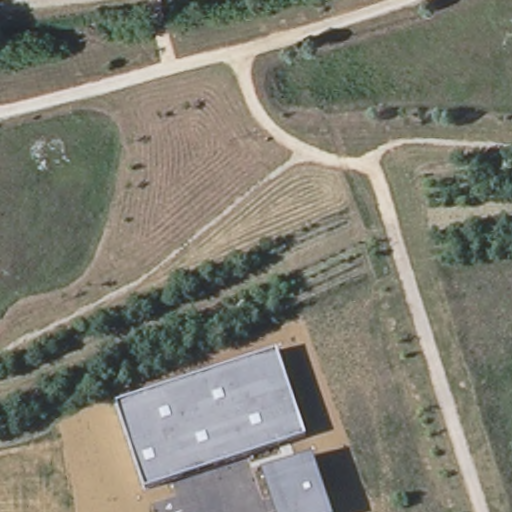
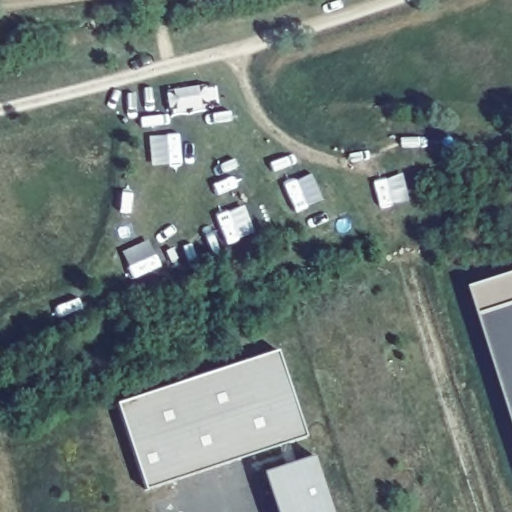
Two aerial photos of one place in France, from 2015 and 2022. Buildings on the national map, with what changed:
new [(512,278),(512,413),(472,291),(512,278)]
unchanged [(306,436),(147,488),(118,403),(277,352),(306,436)]
unchanged [(314,456),(333,512),(285,512),(272,472),(314,456)]

